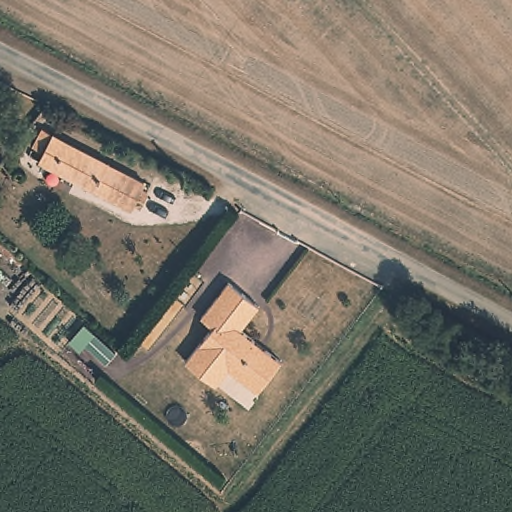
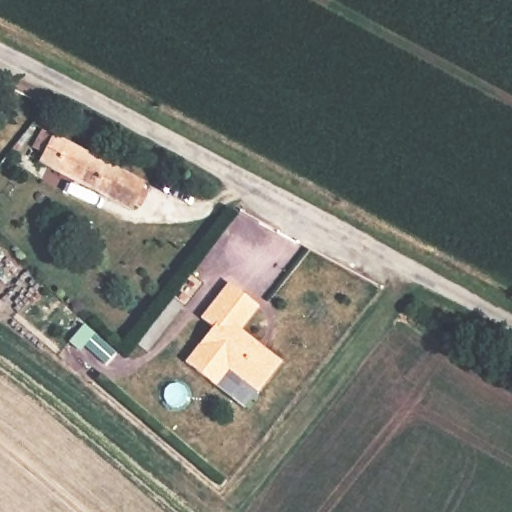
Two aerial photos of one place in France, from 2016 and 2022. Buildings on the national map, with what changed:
unchanged [(139,177),(135,184),(141,187),(134,202),(127,199),(125,205),(34,157),(38,149),(27,143),(36,125),(139,177)]
unchanged [(285,357),(262,386),(233,363),(220,380),(190,357),(218,322),(206,312),(234,277),(263,301),(245,325),(285,357)]

